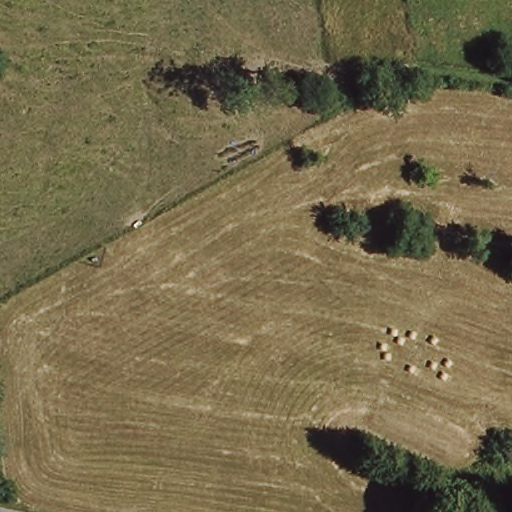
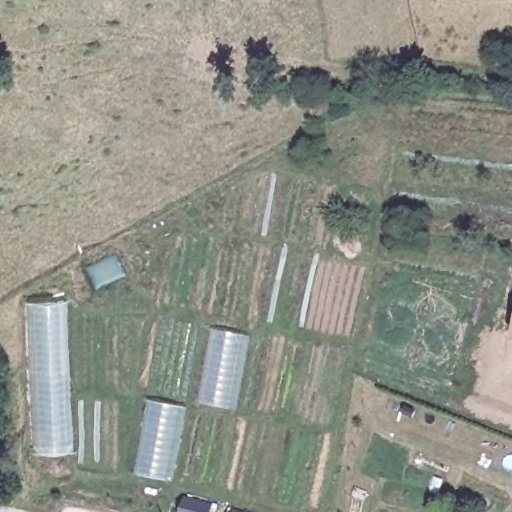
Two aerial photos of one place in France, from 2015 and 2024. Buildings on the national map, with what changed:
new [(25,303),(63,302),(70,451),(31,452),(25,303)]
new [(209,330),(247,337),(235,411),(197,404),(209,330)]
new [(144,399),(184,408),(168,483),(132,475),(144,399)]

